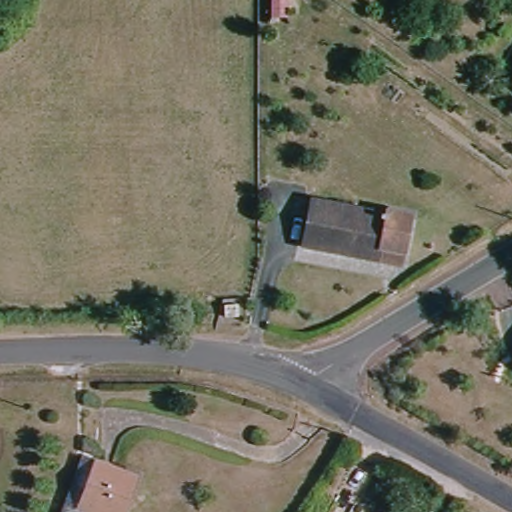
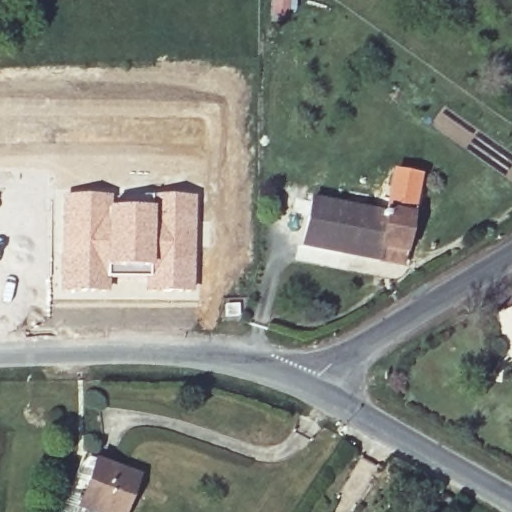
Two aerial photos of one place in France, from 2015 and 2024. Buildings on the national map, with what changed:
unchanged [(268,12),(267,0),(282,0),(282,13),(268,12)]
unchanged [(381,250),(352,246),(352,254),(307,248),(309,198),(411,209),(407,244),(405,264),(379,261),(381,250)]
new [(63,289),(63,199),(106,199),(106,211),(148,210),(149,199),(190,199),(190,290),(148,289),(148,278),(106,279),(105,289),(63,289)]
unchanged [(117,512),(81,512),(72,509),(89,461),(130,475),(117,512)]

